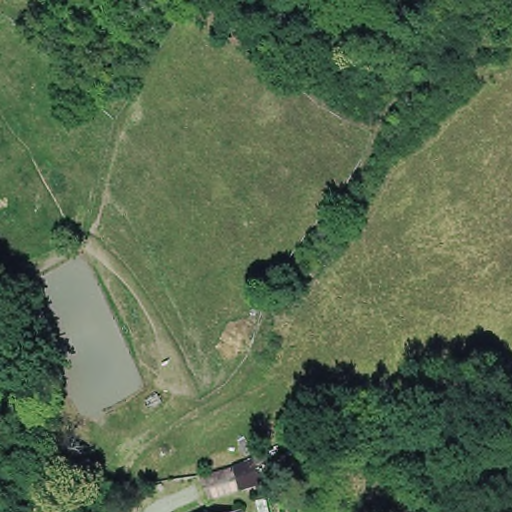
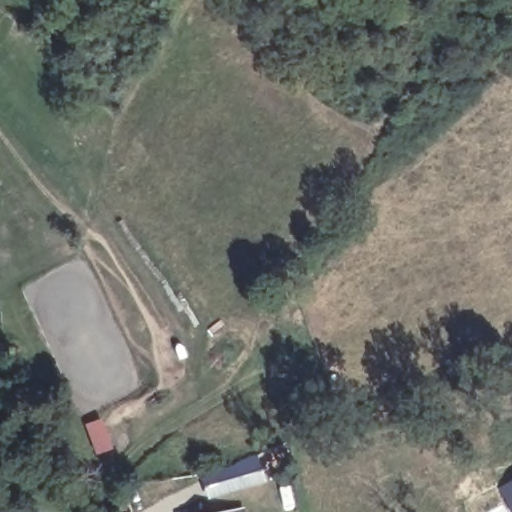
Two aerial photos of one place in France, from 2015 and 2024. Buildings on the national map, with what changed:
unchanged [(0,396),(0,373),(12,368),(22,395),(3,403),(0,396)]
unchanged [(231,467),(251,458),(260,483),(240,490),(210,501),(202,477),(232,468),(231,467)]
new [(512,480),(512,512),(508,512),(496,488),(512,480)]
unchanged [(245,507),(246,512),(223,512),(245,507)]

